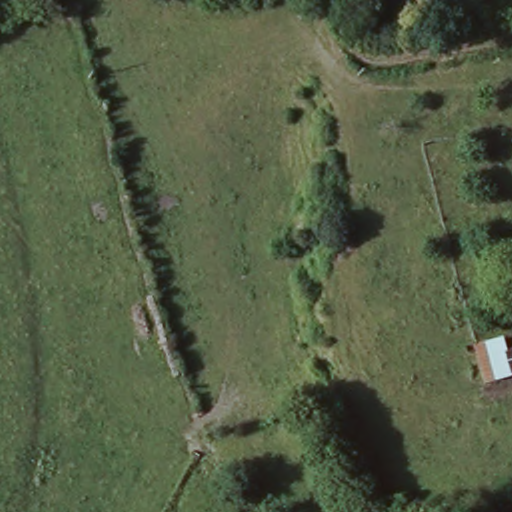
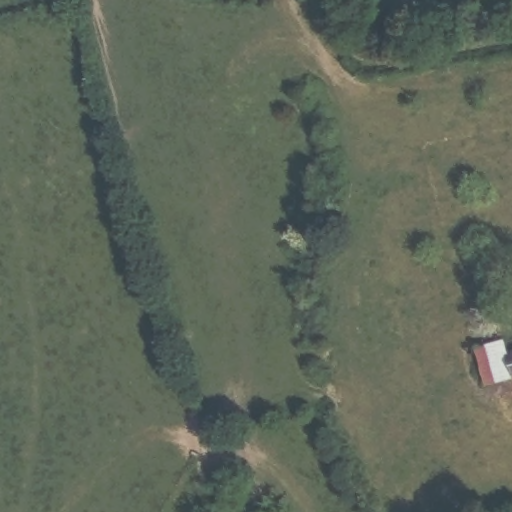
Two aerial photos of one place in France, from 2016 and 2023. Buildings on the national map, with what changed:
unchanged [(474,345),(504,338),(507,355),(512,354),(512,379),(483,388),(474,345)]

